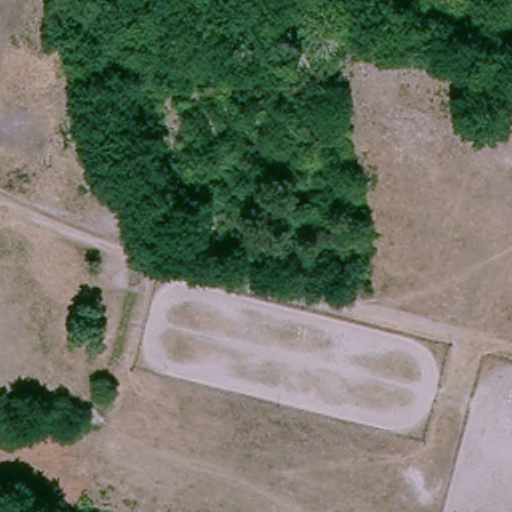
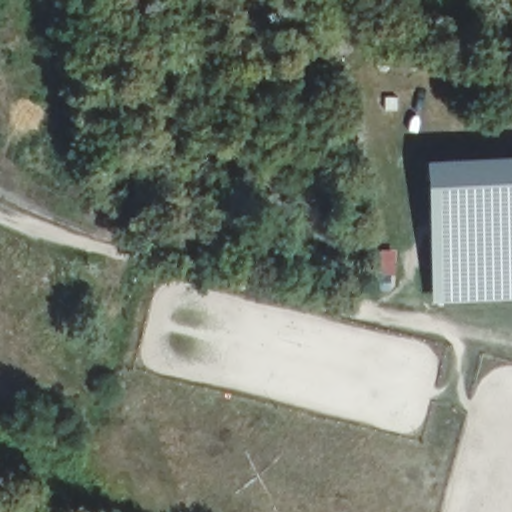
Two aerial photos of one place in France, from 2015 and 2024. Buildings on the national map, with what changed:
new [(431,303),(425,163),(512,159),(512,299),(431,303)]

